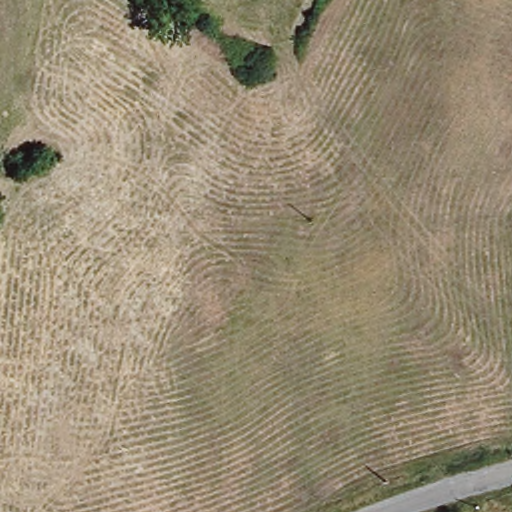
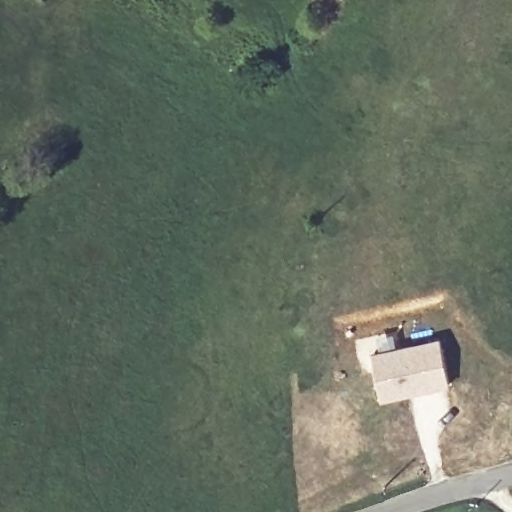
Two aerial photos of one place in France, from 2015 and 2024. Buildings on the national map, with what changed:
new [(452,379),(385,395),(374,352),(441,336),(452,379)]

